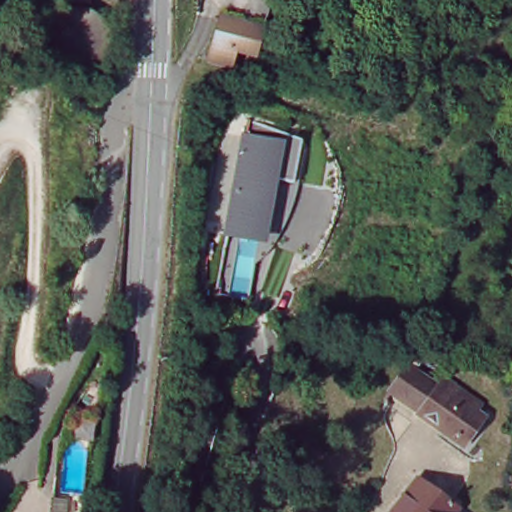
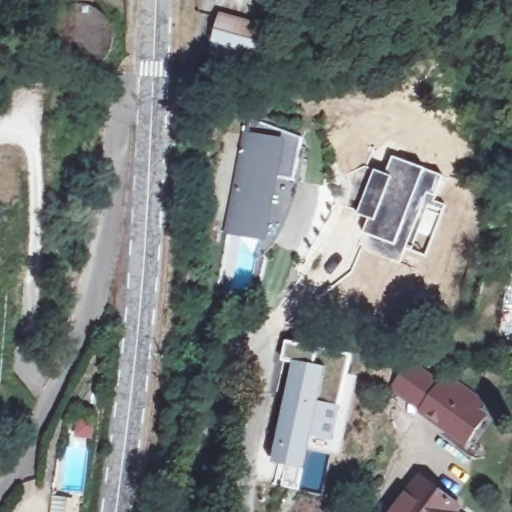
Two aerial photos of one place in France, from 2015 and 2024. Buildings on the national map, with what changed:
unchanged [(221,15),(260,22),(247,74),(209,62),(221,15)]
unchanged [(303,137),(294,184),(281,182),(268,242),(225,235),(245,137),(253,119),(303,137)]
new [(373,167),(384,172),(391,155),(445,175),(437,199),(447,203),(426,257),(407,250),(401,265),(356,248),(366,220),(355,215),(373,167)]
new [(321,348),(352,355),(333,441),(313,436),(305,470),(271,462),(293,364),(281,362),(286,342),(321,348)]
unchanged [(413,408),(379,384),(399,358),(432,382),(413,408)]
unchanged [(432,382),(438,375),(473,400),(468,408),(477,414),(458,441),(455,438),(454,437),(449,433),(444,430),(441,430),(413,408),(432,382)]
unchanged [(421,475),(457,502),(452,512),(390,512),(421,475)]
unchanged [(477,511),(478,512),(476,512),(477,511)]

